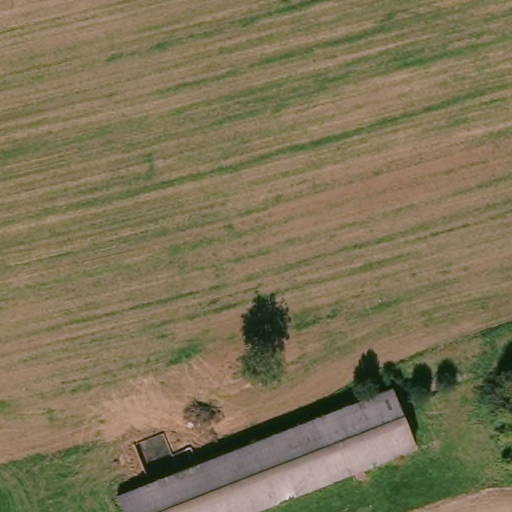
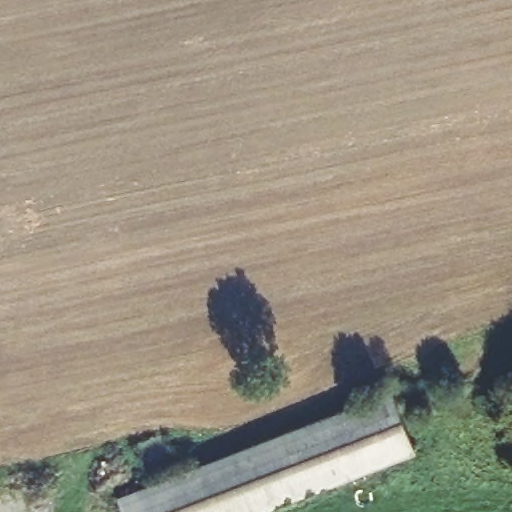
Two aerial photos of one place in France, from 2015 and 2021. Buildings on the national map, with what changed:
unchanged [(256,512),(133,512),(128,498),(396,389),(420,445),(256,512)]

